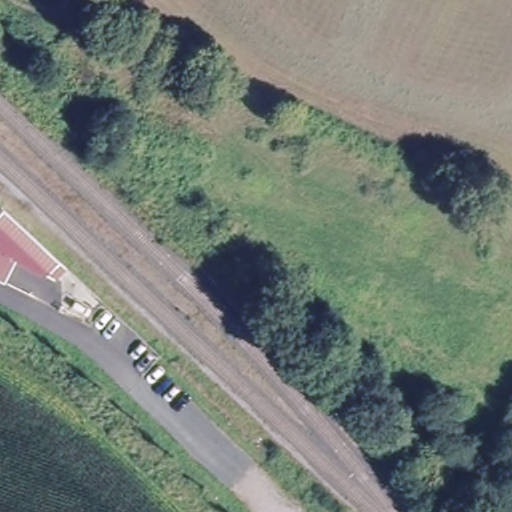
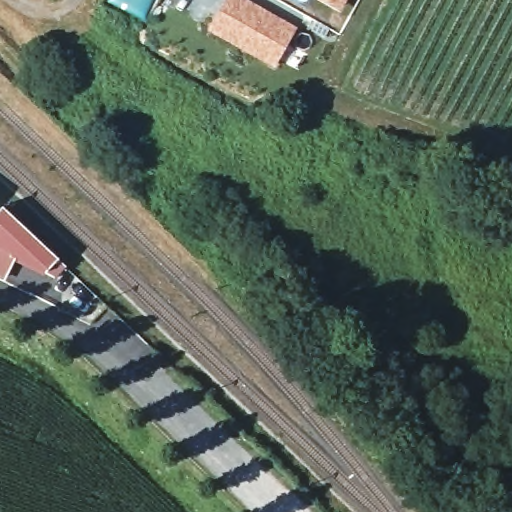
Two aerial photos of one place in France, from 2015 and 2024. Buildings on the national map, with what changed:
new [(251,0),(298,26),(274,70),(206,31),(224,0),(251,0)]
new [(317,0),(347,0),(339,13),(317,0)]
unchanged [(55,279),(11,256),(0,278),(0,209),(1,208),(65,267),(55,279)]

